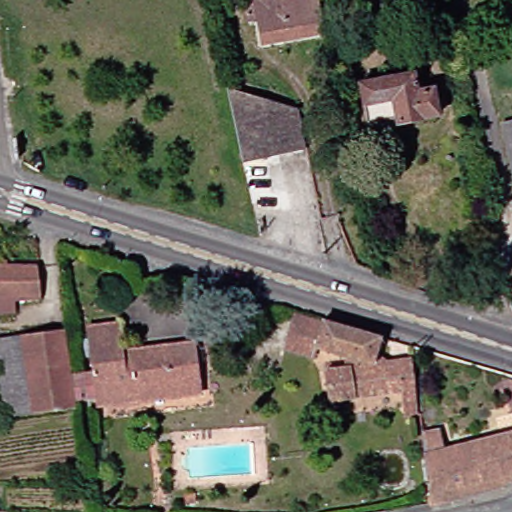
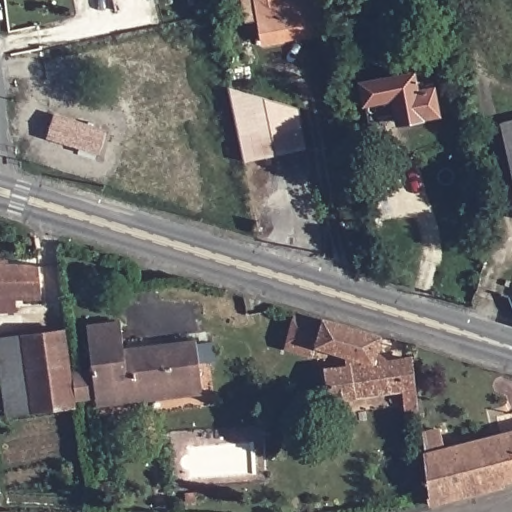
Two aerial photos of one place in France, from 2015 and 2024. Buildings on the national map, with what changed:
unchanged [(251,19),(249,0),(322,0),(328,31),(268,40),(264,16),(251,19)]
unchanged [(427,90),(444,87),(449,111),(433,115),(433,116),(409,121),(408,116),(379,122),(371,84),(424,73),(427,90)]
unchanged [(316,152),(253,168),(238,95),(309,118),(316,152)]
new [(56,117),(103,132),(98,151),(49,136),(56,117)]
unchanged [(512,122),(512,145),(507,124),(512,122)]
unchanged [(43,266),(46,295),(20,295),(20,311),(0,312),(0,265),(43,266)]
unchanged [(328,321),(328,319),(386,337),(379,364),(418,357),(424,414),(412,415),(409,390),(336,400),(331,369),(351,366),(351,355),(321,347),(319,355),(290,347),(301,313),(328,321)]
unchanged [(103,371),(97,327),(131,322),(135,357),(171,353),(171,346),(199,342),(206,391),(166,396),(165,389),(86,400),(85,393),(83,374),(103,371)]
unchanged [(74,330),(85,405),(16,415),(6,340),(74,330)]
unchanged [(449,451),(459,448),(458,446),(512,433),(512,478),(507,480),(508,485),(436,503),(428,432),(444,430),(449,451)]

